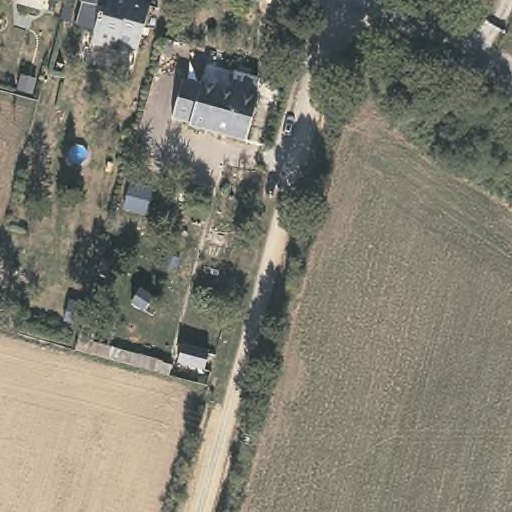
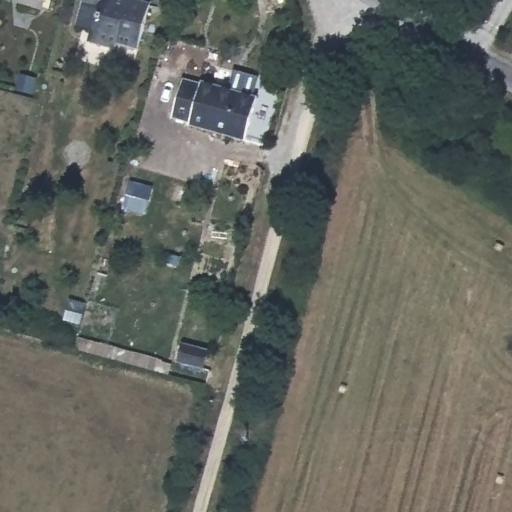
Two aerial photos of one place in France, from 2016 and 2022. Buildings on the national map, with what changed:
unchanged [(21,0),(48,0),(45,11),(19,5),(21,0)]
unchanged [(146,2),(135,45),(115,40),(113,47),(89,41),(92,29),(74,24),(81,1),(77,0),(78,0),(139,0),(146,2)]
unchanged [(257,95),(245,136),(185,119),(187,112),(168,107),(176,80),(195,85),(197,79),(257,95)]
unchanged [(171,363),(166,378),(75,355),(80,339),(171,363)]
unchanged [(210,355),(205,372),(179,365),(183,348),(210,355)]

